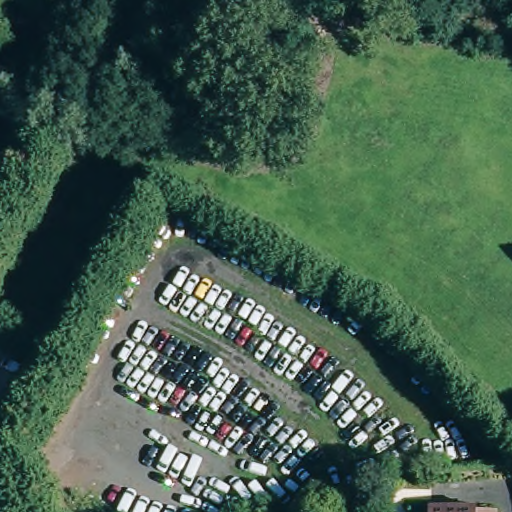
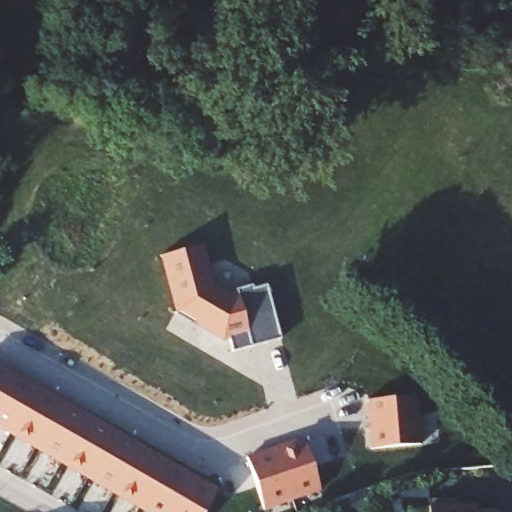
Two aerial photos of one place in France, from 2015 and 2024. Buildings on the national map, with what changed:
new [(192,326),(194,324),(175,313),(159,256),(202,246),(212,283),(237,297),(234,289),(252,285),(252,288),(265,285),(280,339),(231,352),(227,341),(222,342),(192,326)]
new [(0,366),(217,490),(205,512),(143,512),(0,430),(0,366)]
new [(365,401),(416,397),(420,445),(370,448),(365,401)]
new [(245,456),(302,437),(320,492),(265,511),(245,456)]
unchanged [(475,505),(475,511),(497,510),(497,512),(427,512),(427,511),(427,506),(439,506),(456,506),(475,505)]

